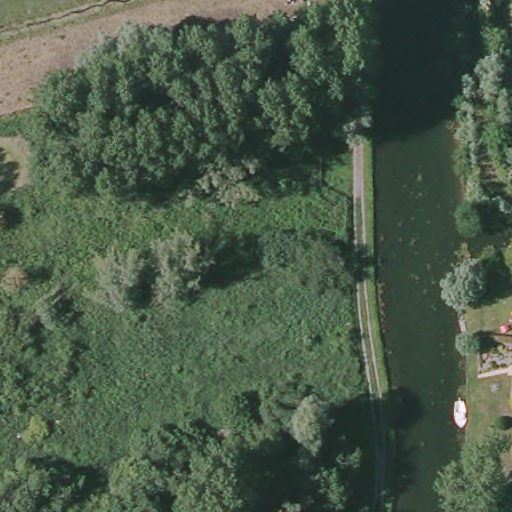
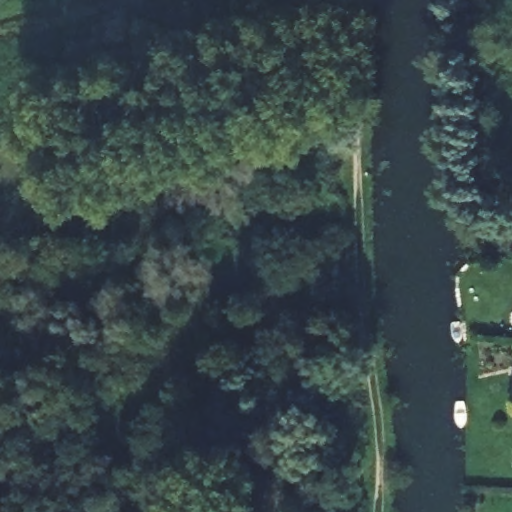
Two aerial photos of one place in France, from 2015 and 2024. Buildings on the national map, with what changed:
[]

